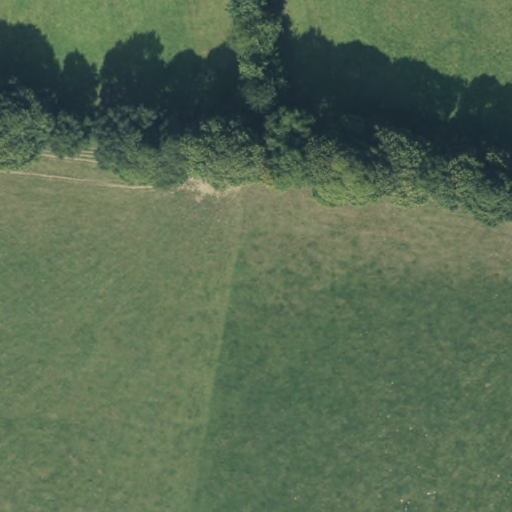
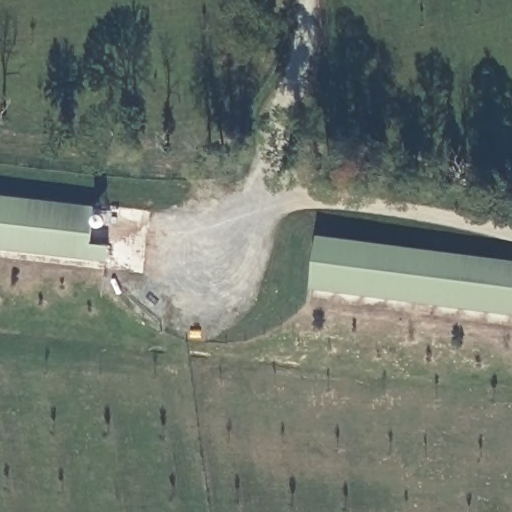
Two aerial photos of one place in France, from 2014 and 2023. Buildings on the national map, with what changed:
new [(107,260),(0,247),(0,193),(96,205),(92,243),(110,246),(107,260)]
new [(318,238),(512,262),(512,317),(312,292),(318,238)]

